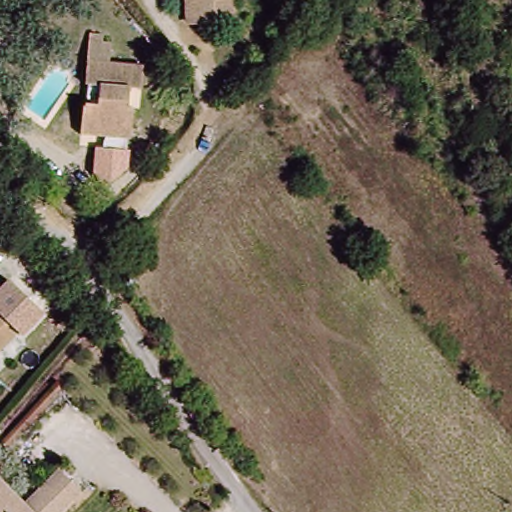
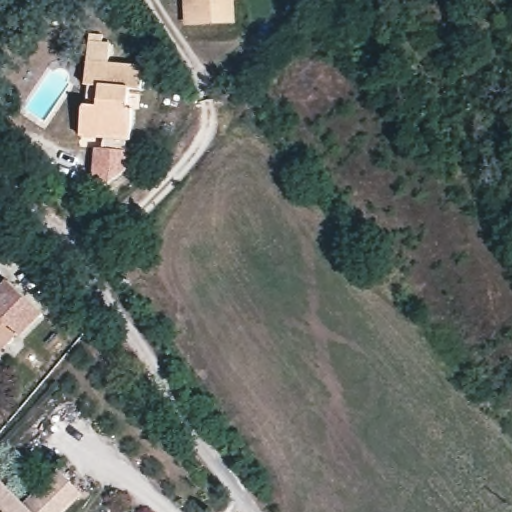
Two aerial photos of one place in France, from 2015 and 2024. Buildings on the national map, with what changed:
unchanged [(229,22),(183,22),(183,0),(229,0),(229,22)]
unchanged [(82,154),(82,140),(84,113),(85,90),(87,50),(105,50),(106,70),(141,73),(140,94),(128,94),(127,115),(133,115),(132,142),(132,155),(82,154)]
unchanged [(40,301),(24,316),(0,343),(0,283),(8,272),(40,301)]
unchanged [(55,469),(84,494),(67,512),(0,512),(0,486),(22,505),(55,469)]

